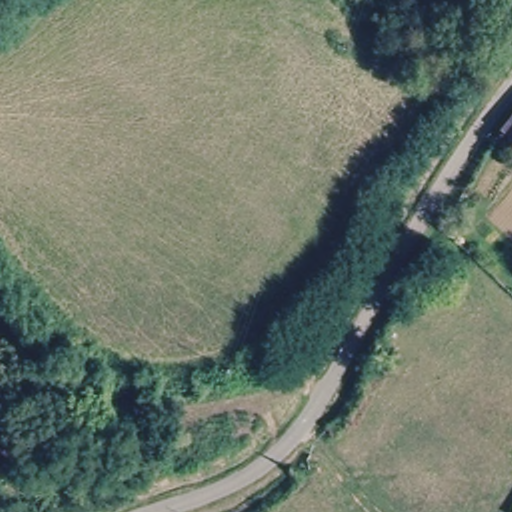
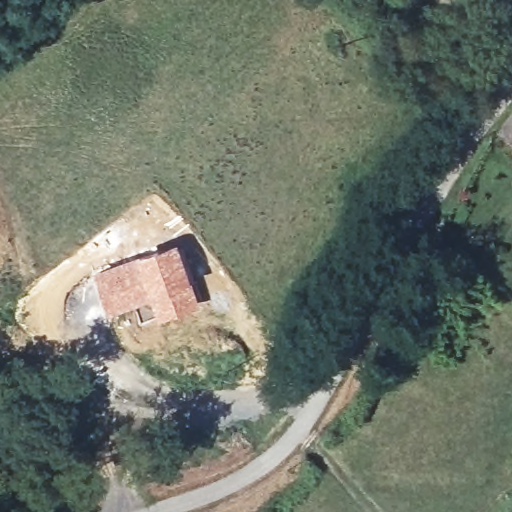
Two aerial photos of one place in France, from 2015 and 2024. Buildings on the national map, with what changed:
unchanged [(512,118),(512,139),(501,131),(512,118)]
new [(129,259),(178,242),(200,304),(157,320),(151,301),(109,315),(94,273),(129,259)]

